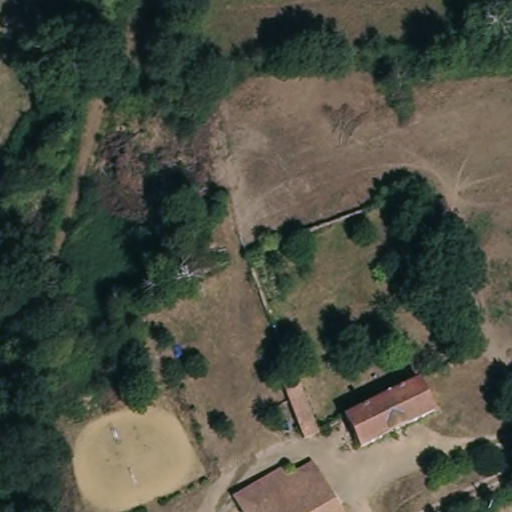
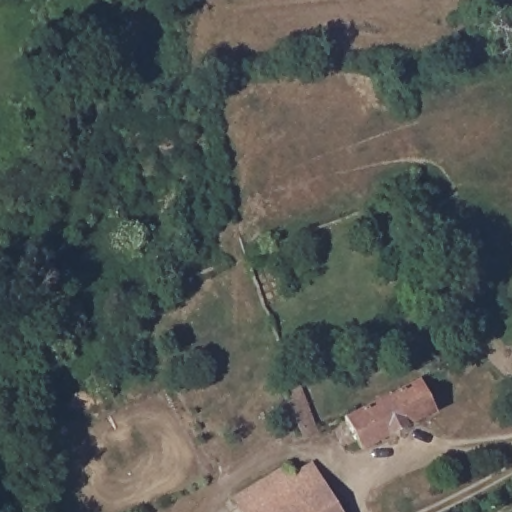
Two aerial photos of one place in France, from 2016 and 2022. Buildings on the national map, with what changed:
unchanged [(412,379),(428,411),(354,448),(338,416),(412,379)]
unchanged [(315,431),(316,433),(302,440),(298,428),(281,385),(294,380),(296,380),(315,431)]
unchanged [(237,512),(228,497),(276,468),(281,477),(305,464),(335,512),(237,512)]

